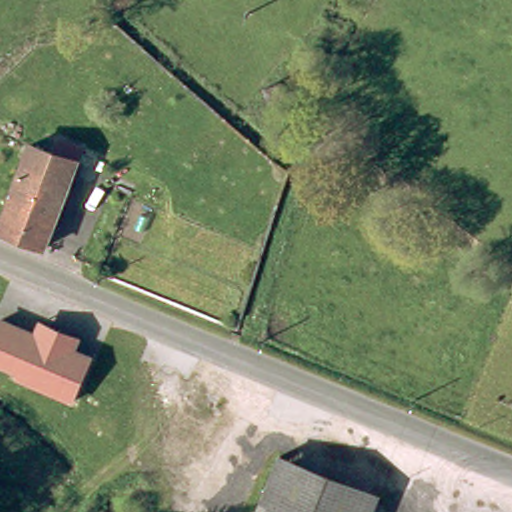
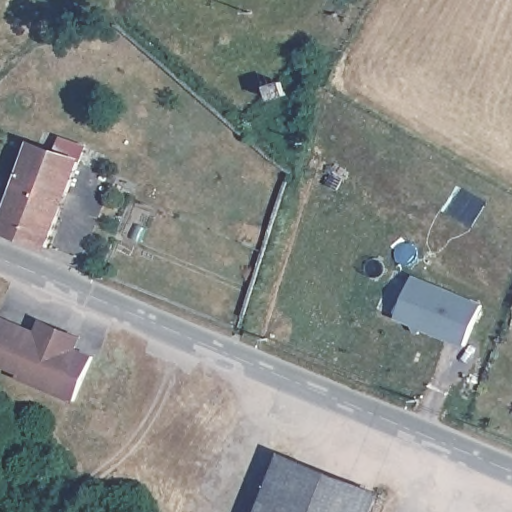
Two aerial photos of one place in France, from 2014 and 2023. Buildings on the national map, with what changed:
unchanged [(25,135),(53,146),(61,126),(84,136),(76,156),(44,234),(39,241),(0,225),(0,196),(25,135)]
new [(412,275),(481,303),(464,347),(394,318),(412,275)]
unchanged [(0,315),(36,329),(40,319),(81,339),(79,346),(94,354),(76,399),(18,379),(18,371),(0,365),(0,317),(0,315)]
unchanged [(277,444),(374,483),(363,512),(249,512),(277,444)]

